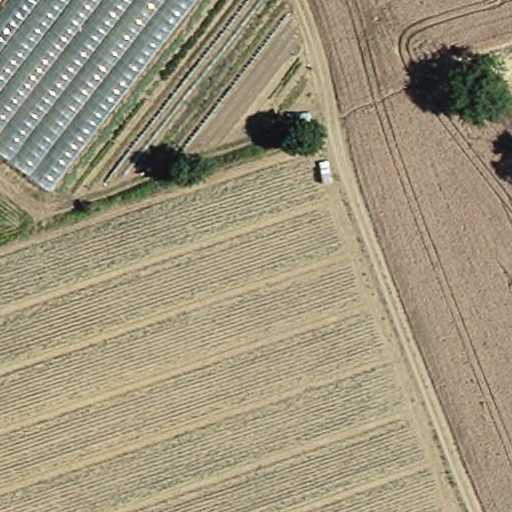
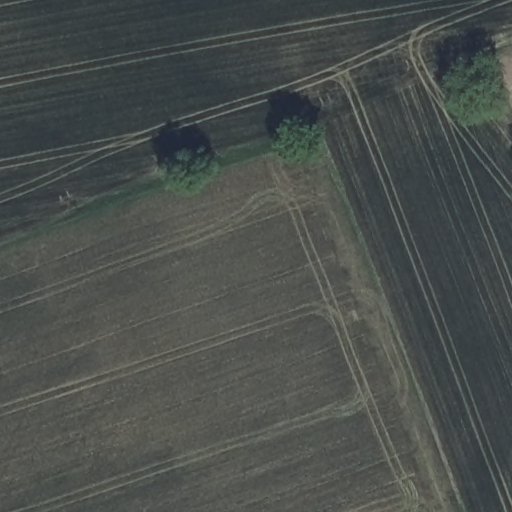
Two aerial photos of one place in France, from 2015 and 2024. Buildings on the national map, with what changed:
demolished [(0,150),(0,0),(196,0),(50,189),(0,150)]

